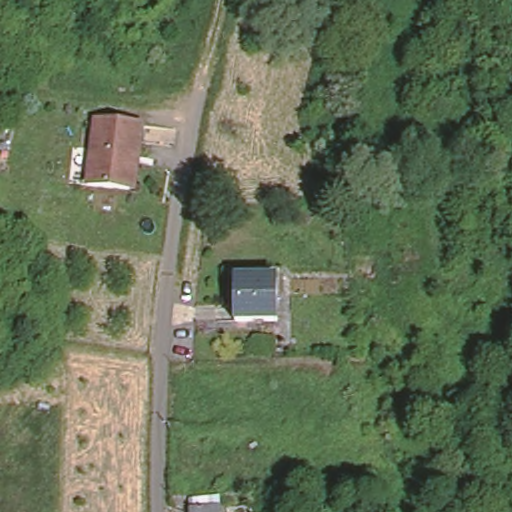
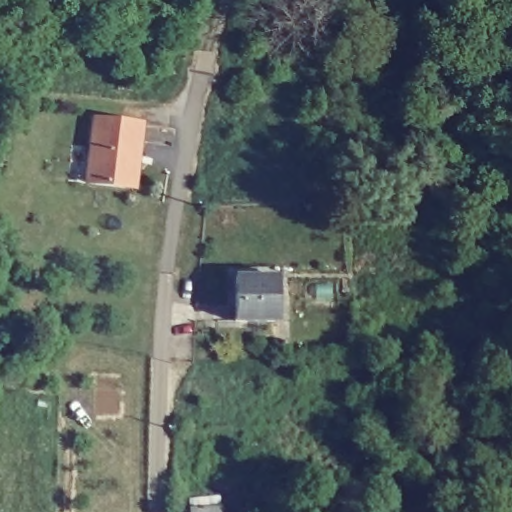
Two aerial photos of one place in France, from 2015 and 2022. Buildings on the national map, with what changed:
unchanged [(90,115),(138,120),(135,152),(129,152),(128,159),(86,154),(90,115)]
unchanged [(128,159),(126,185),(83,181),(86,154),(128,159)]
unchanged [(274,321),(232,321),(234,276),(275,276),(274,321)]
unchanged [(218,512),(187,512),(187,505),(218,503),(218,512)]

